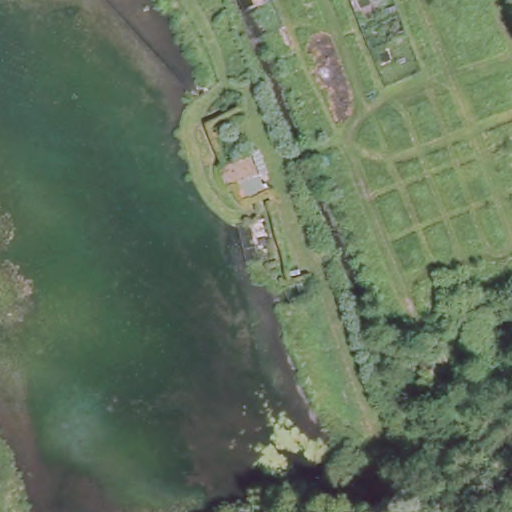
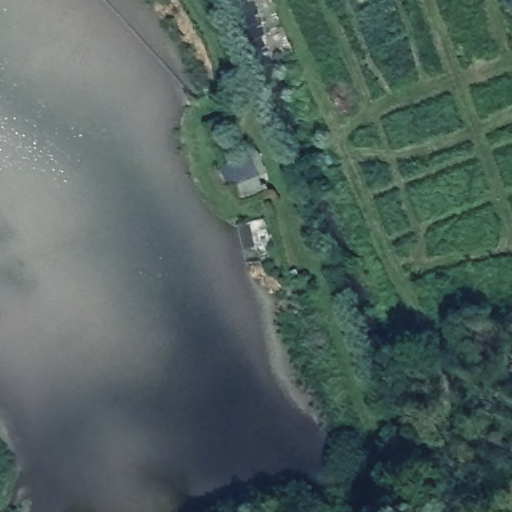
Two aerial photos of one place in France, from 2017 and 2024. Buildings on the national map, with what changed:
unchanged [(260,152),(265,151),(270,171),(261,175),(263,182),(247,189),(242,179),(227,182),(220,166),(245,157),(241,150),(257,144),(260,152)]

